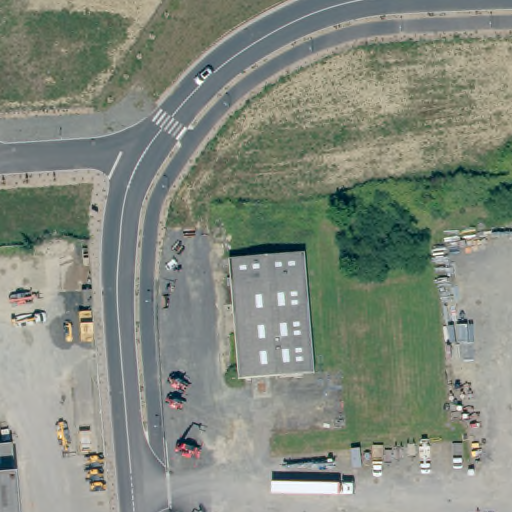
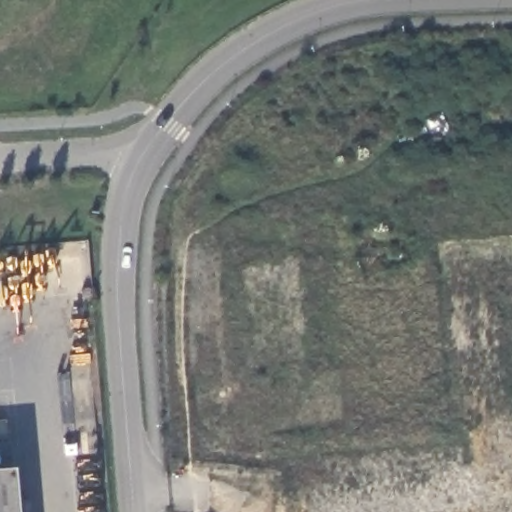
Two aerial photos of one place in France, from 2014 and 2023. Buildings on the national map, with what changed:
demolished [(305,255),(313,374),(240,380),(230,260),(305,255)]
unchanged [(0,472),(0,446),(10,445),(13,471),(0,472)]
unchanged [(14,472),(17,512),(0,512),(0,472),(13,471),(14,472)]

